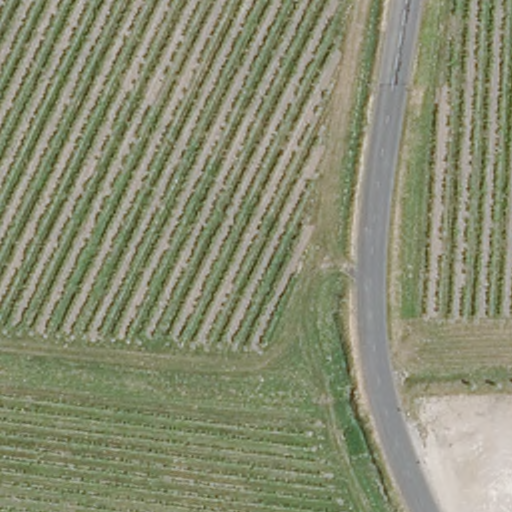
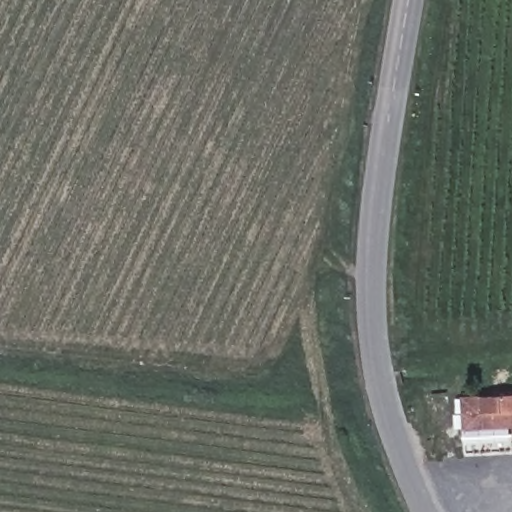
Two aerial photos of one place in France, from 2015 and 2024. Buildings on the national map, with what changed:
new [(461,397),(479,397),(512,394),(512,427),(464,429),(461,397)]

